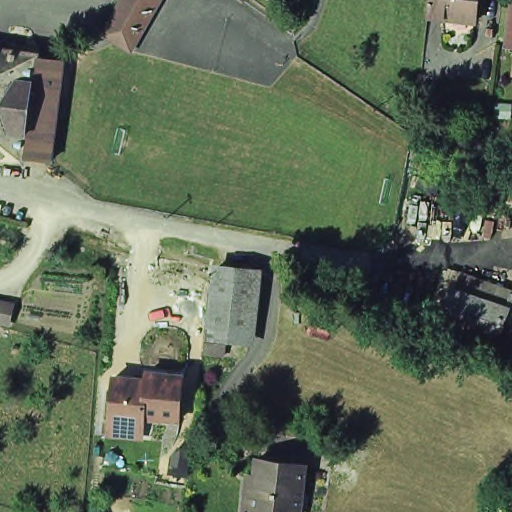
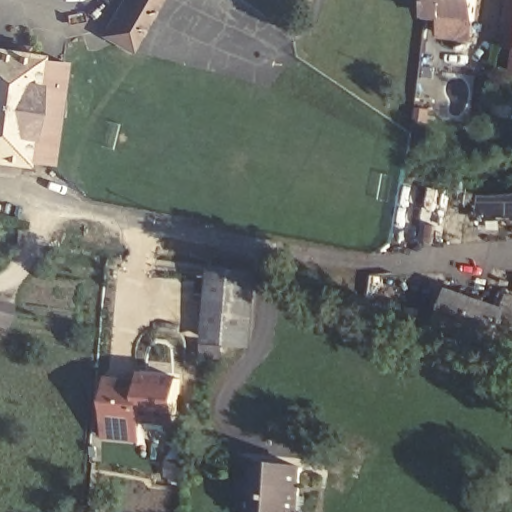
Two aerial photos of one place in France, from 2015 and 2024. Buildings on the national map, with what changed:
unchanged [(103,30),(120,0),(144,0),(154,5),(131,45),(103,30)]
unchanged [(144,0),(157,0),(154,5),(144,0)]
unchanged [(443,23),(445,8),(427,6),(428,0),(477,0),(476,11),(474,11),(472,25),(443,23)]
unchanged [(506,41),(512,0),(512,42),(506,41)]
unchanged [(0,159),(0,50),(37,55),(37,57),(23,158),(22,162),(0,159)]
unchanged [(50,162),(23,158),(37,57),(64,61),(60,93),(55,129),(50,162)]
unchanged [(202,329),(210,259),(250,264),(242,334),(202,329)]
unchanged [(447,287),(500,306),(488,341),(435,322),(447,287)]
unchanged [(488,341),(500,306),(505,293),(512,296),(512,349),(488,341)]
unchanged [(0,318),(0,301),(15,304),(12,311),(10,320),(2,319),(0,318)]
unchanged [(106,375),(148,373),(148,364),(187,369),(183,417),(141,420),(141,432),(103,434),(106,375)]
unchanged [(247,471),(253,471),(255,457),(255,453),(282,456),(303,458),(297,510),(293,510),(278,508),(252,506),(250,505),(242,504),(247,471)]

